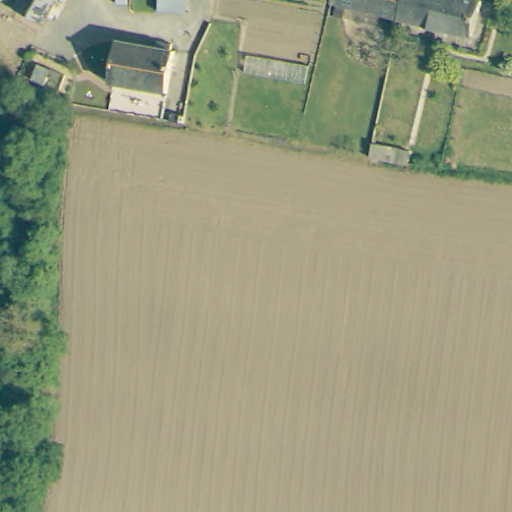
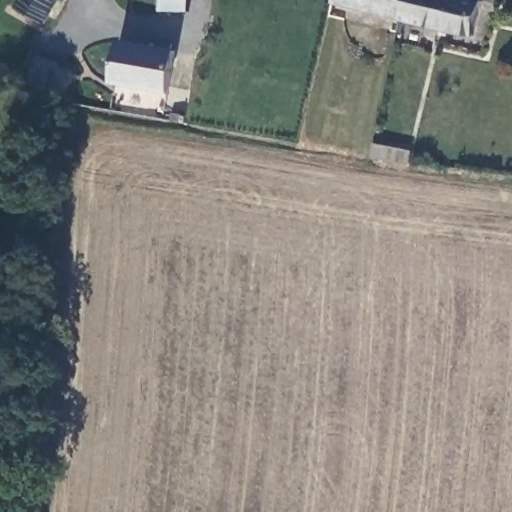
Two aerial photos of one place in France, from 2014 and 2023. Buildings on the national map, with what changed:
unchanged [(19,19),(28,0),(64,0),(49,32),(19,19)]
unchanged [(129,25),(129,14),(158,15),(159,0),(191,0),(188,28),(129,25)]
unchanged [(322,4),(323,0),(400,0),(395,23),(322,4)]
unchanged [(464,39),(395,23),(400,0),(467,0),(473,1),(473,0),(488,0),(484,19),(469,15),(464,39)]
unchanged [(175,56),(167,99),(113,88),(120,47),(175,56)]

